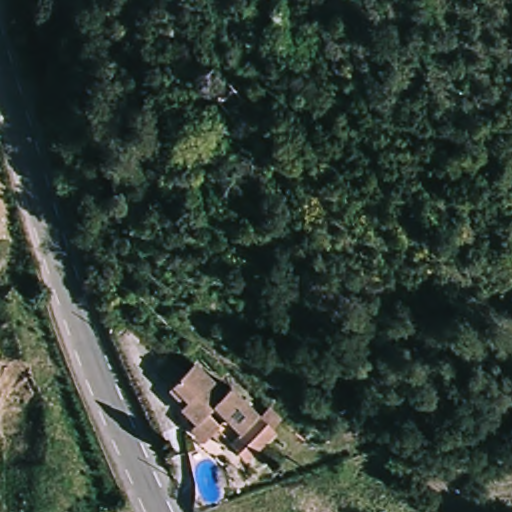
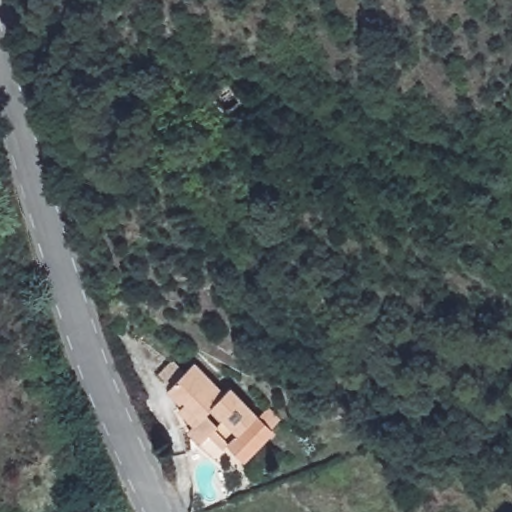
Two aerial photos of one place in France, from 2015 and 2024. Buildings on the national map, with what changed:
unchanged [(210,90),(226,76),(243,96),(227,109),(210,90)]
unchanged [(211,437),(207,442),(188,428),(169,389),(193,362),(223,390),(230,384),(273,424),(243,456),(229,443),(224,447),(211,437)]

